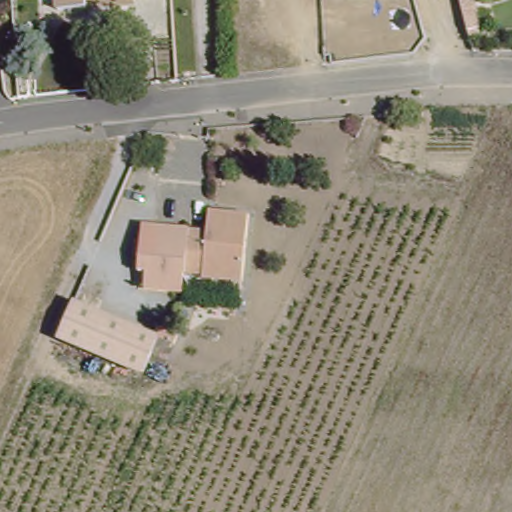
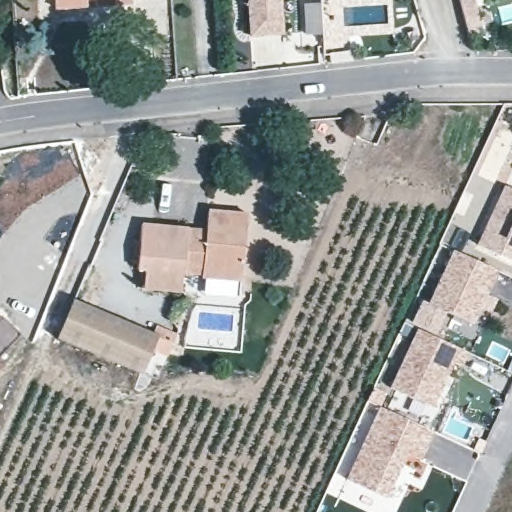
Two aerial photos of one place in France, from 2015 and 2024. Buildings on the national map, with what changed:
unchanged [(55,0),(80,0),(81,9),(55,12),(55,0)]
unchanged [(248,32),(246,0),(279,0),(280,30),(248,32)]
new [(505,186),(512,189),(512,262),(477,245),(505,186)]
unchanged [(146,281),(147,266),(140,265),(144,220),(208,225),(210,206),(252,209),(245,276),(205,272),(205,270),(187,268),(185,283),(146,281)]
new [(453,251),(498,271),(475,325),(428,305),(453,251)]
unchanged [(151,334),(137,372),(53,338),(68,301),(151,334)]
new [(0,320),(3,317),(21,335),(0,358),(0,320)]
new [(417,330),(469,352),(463,368),(453,365),(434,407),(391,390),(417,330)]
new [(435,432),(422,462),(407,456),(388,499),(345,481),(380,408),(435,432)]

